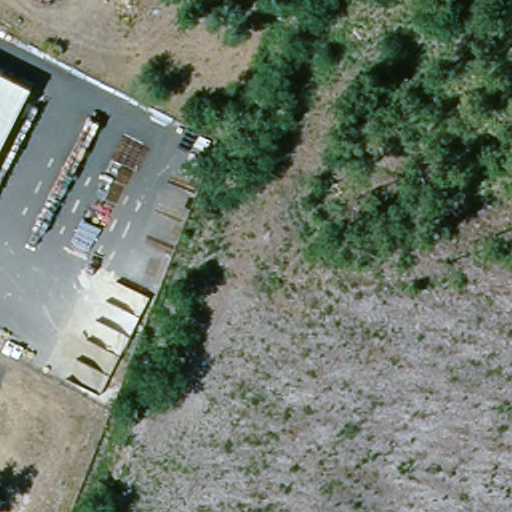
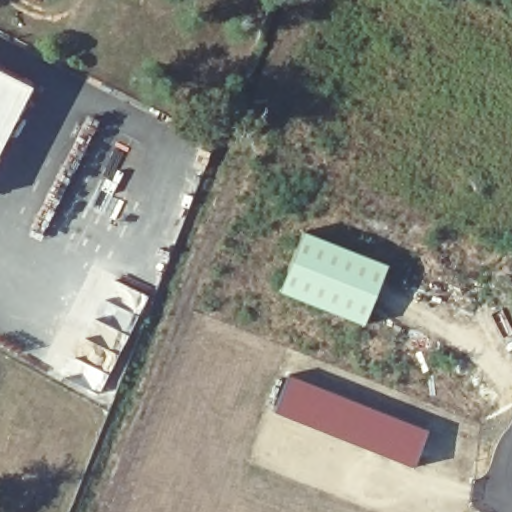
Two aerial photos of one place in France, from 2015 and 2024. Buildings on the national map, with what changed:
unchanged [(32,86),(0,146),(0,70),(32,86)]
new [(303,236),(387,269),(364,330),(279,297),(303,236)]
new [(290,379),(431,434),(416,472),(275,417),(290,379)]

